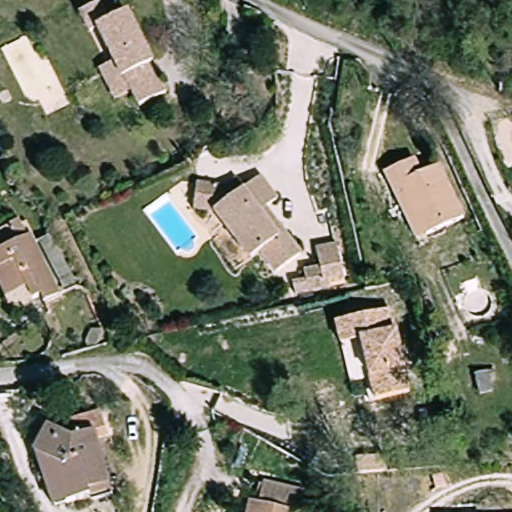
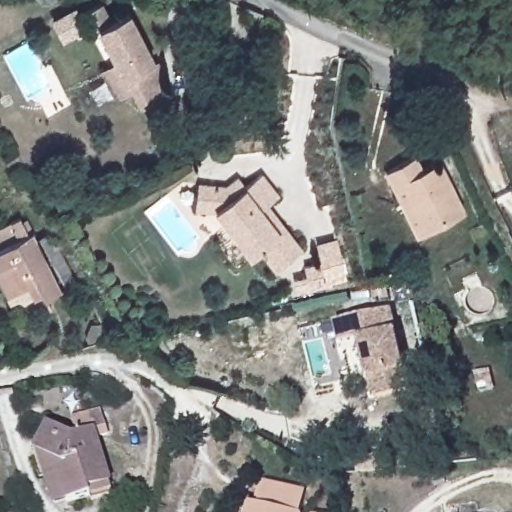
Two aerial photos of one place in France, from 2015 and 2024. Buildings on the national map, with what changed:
unchanged [(95,80),(109,72),(93,39),(86,42),(76,22),(97,12),(106,32),(124,23),(148,74),(146,75),(160,103),(133,116),(126,101),(109,109),(95,80)]
unchanged [(400,189),(392,172),(420,159),(426,171),(441,164),(466,218),(431,235),(422,239),(400,189)]
unchanged [(280,276),(262,255),(253,263),(215,217),(195,215),(198,190),(226,193),(237,184),(245,194),(261,181),(278,202),(266,212),(278,227),(303,257),(280,276)]
unchanged [(28,235),(60,292),(45,300),(42,293),(33,298),(27,287),(7,297),(0,284),(0,250),(28,235)]
unchanged [(292,286),(290,275),(303,272),(301,262),(317,258),(315,242),(335,237),(342,276),(292,286)]
unchanged [(416,386),(382,393),(368,333),(348,338),(343,317),(363,312),(397,304),(416,386)]
unchanged [(90,507),(90,502),(62,512),(54,512),(36,463),(33,462),(46,435),(70,446),(75,444),(69,428),(98,418),(106,441),(93,446),(109,490),(112,499),(90,507)]
unchanged [(310,493),(305,512),(254,512),(256,502),(264,503),(270,484),(310,493)]

